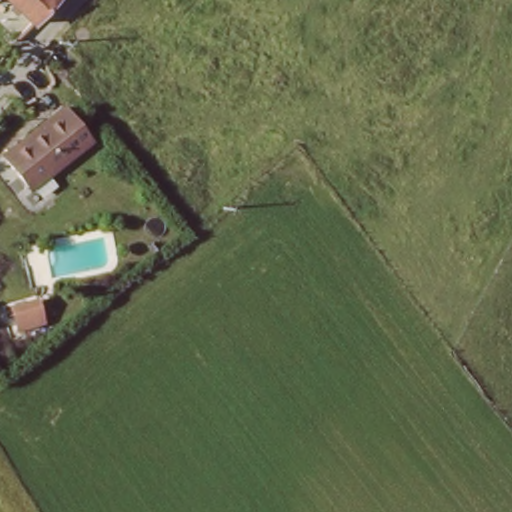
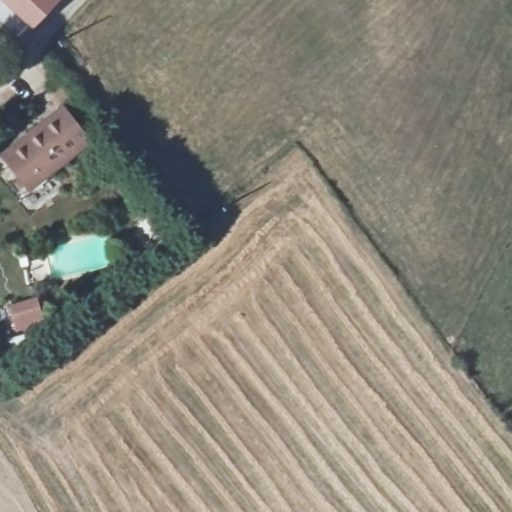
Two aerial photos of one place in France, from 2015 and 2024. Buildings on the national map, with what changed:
unchanged [(10,34),(5,28),(20,14),(7,0),(46,0),(10,34)]
unchanged [(65,107),(90,140),(28,187),(2,154),(65,107)]

